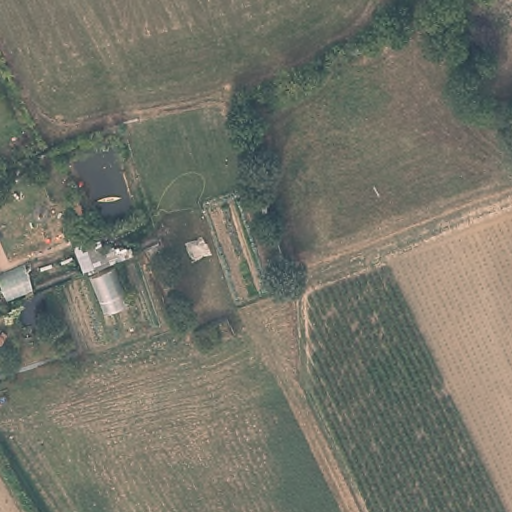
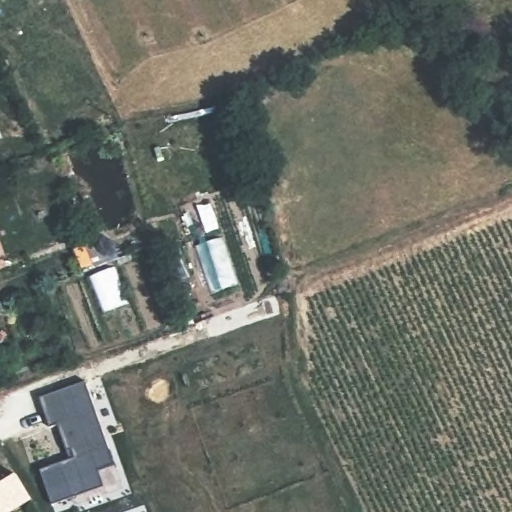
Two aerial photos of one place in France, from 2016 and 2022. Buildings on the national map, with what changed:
new [(50,506),(39,469),(70,459),(57,424),(49,427),(40,397),(84,381),(114,464),(99,471),(104,487),(50,506)]

